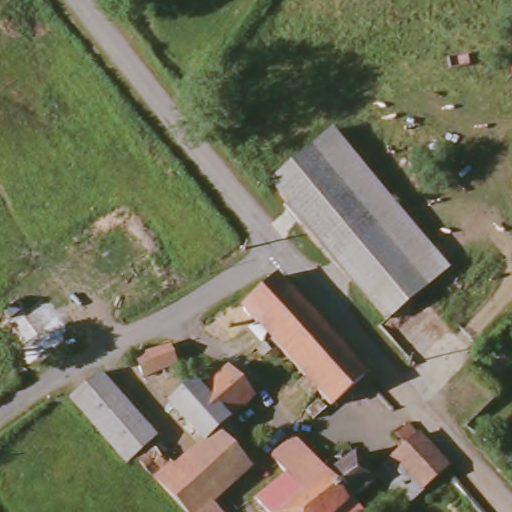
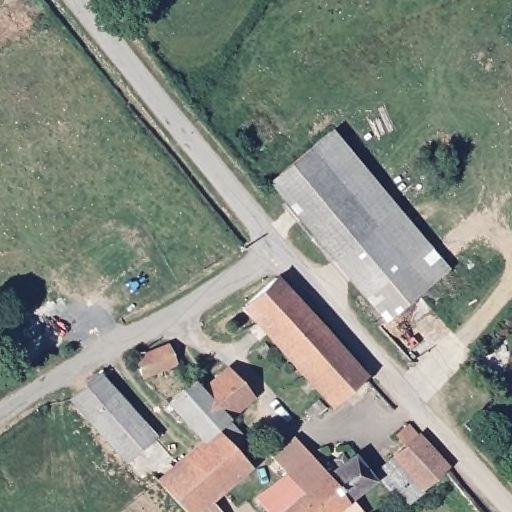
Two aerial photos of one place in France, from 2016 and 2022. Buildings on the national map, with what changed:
unchanged [(449,267),(385,322),(266,182),(331,127),(449,267)]
unchanged [(369,376),(333,407),(244,308),(280,277),(369,376)]
unchanged [(172,366),(142,377),(135,360),(167,347),(172,366)]
unchanged [(231,425),(247,442),(235,454),(251,471),(213,503),(221,512),(186,512),(139,463),(157,449),(178,472),(209,447),(174,410),(197,388),(206,397),(230,376),(255,403),(231,425)]
unchanged [(101,378),(159,438),(136,461),(131,465),(74,407),(79,402),(101,378)]
unchanged [(319,410),(305,413),(302,402),(317,398),(319,410)]
unchanged [(330,475),(337,468),(335,462),(343,457),(347,461),(356,457),(359,455),(376,483),(346,502),(336,512),(273,512),(260,497),(288,474),(257,442),(279,420),(309,452),(330,475)]
unchanged [(451,467),(408,506),(379,475),(409,445),(400,435),(412,423),(451,467)]

